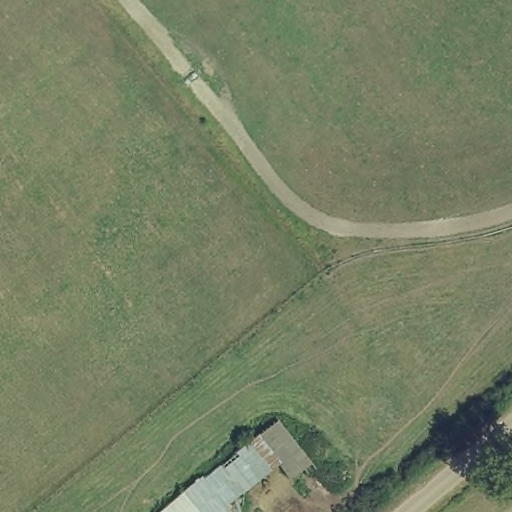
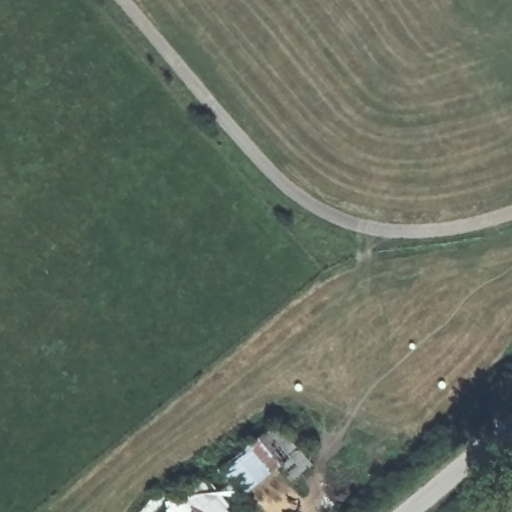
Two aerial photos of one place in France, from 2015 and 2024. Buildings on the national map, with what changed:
unchanged [(281,474),(233,511),(233,512),(170,512),(186,497),(281,423),(314,465),(289,485),(281,474)]

